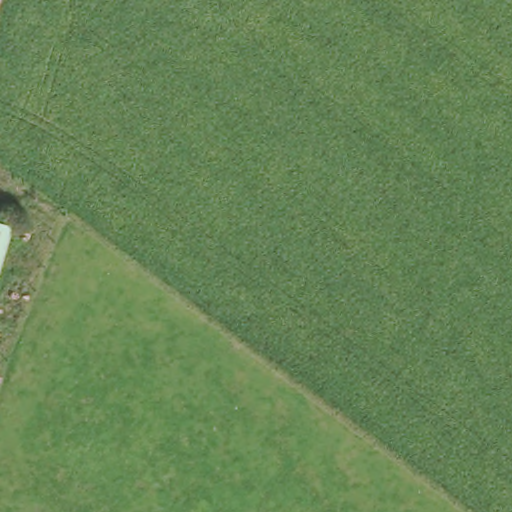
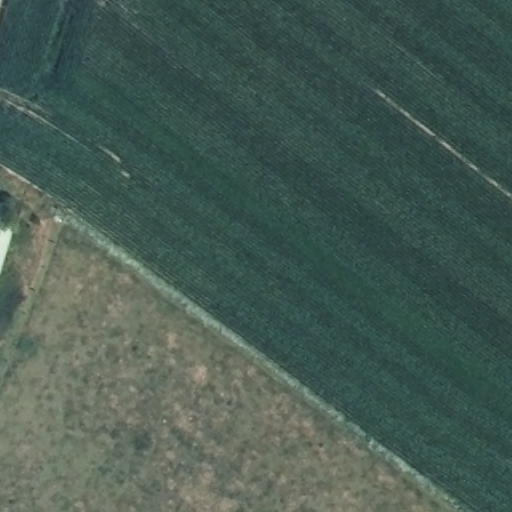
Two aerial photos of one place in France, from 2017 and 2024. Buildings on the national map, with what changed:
unchanged [(7,222),(0,246),(0,221),(7,222)]

